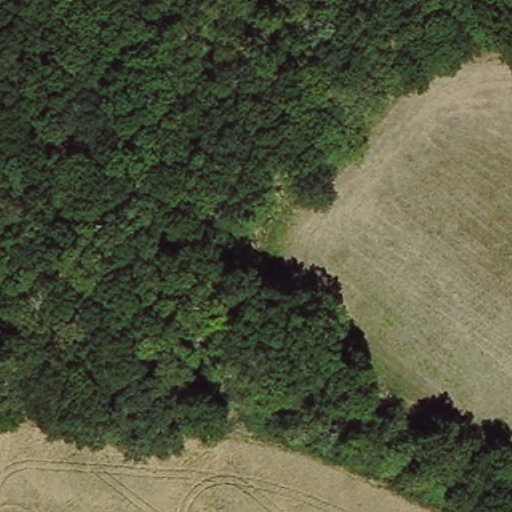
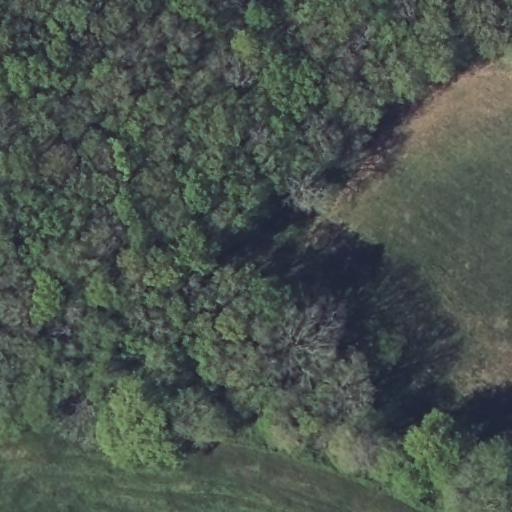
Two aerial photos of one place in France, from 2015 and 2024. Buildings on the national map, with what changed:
unchanged [(501,468),(512,477),(512,488),(505,496),(490,483),(501,468)]

